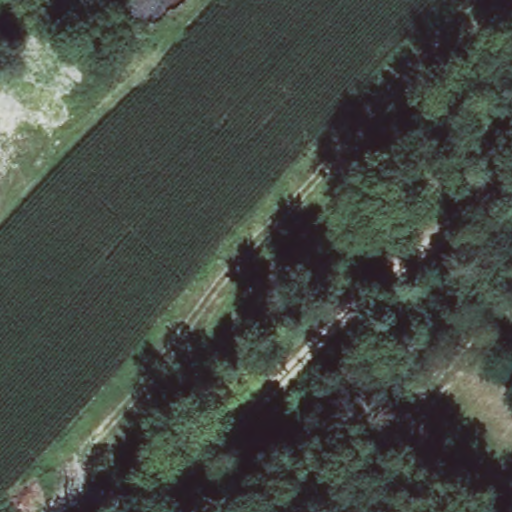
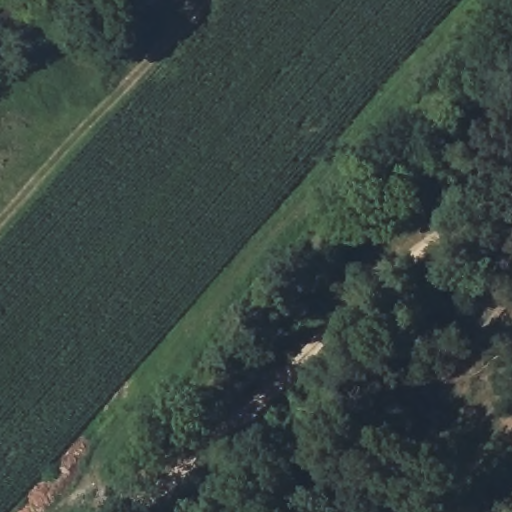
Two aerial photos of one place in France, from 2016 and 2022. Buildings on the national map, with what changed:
unchanged [(390,451),(410,441),(425,456),(409,471),(390,451)]

